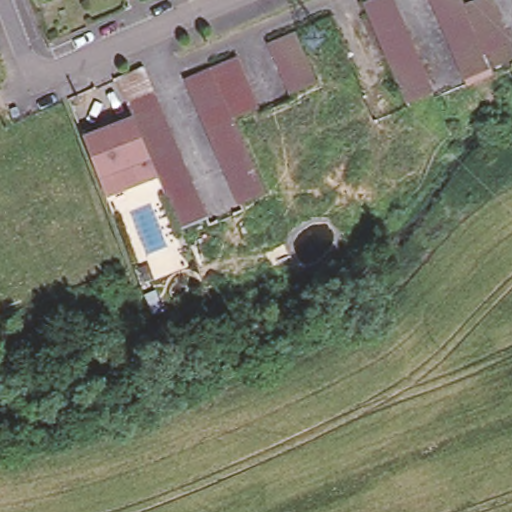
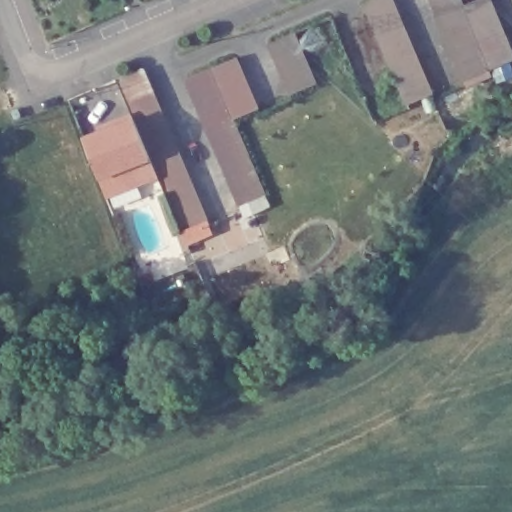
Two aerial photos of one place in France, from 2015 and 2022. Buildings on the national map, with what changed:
unchanged [(387,54),(382,42),(376,30),(370,16),(364,3),(371,0),(392,0),(394,6),(400,19),(406,31),(412,44),(417,56),(422,67),(428,81),(434,92),(409,104),(404,92),(398,79),(392,67),(387,54)]
unchanged [(439,22),(433,10),(429,0),(459,0),(464,11),(489,1),(495,12),(500,25),(505,37),(510,49),(512,54),(512,62),(490,72),(465,83),(460,71),(455,59),(450,47),(445,35),(439,22)]
unchanged [(283,82),(278,70),(273,57),(267,44),(292,33),(298,45),(303,58),(310,71),(315,84),(290,95),(283,82)]
unchanged [(197,110),(191,97),(185,85),(210,74),(235,63),(240,76),(246,89),(252,101),(257,114),(232,125),(237,137),(243,151),(248,162),(254,175),(260,187),(265,201),(241,212),(235,198),(229,185),(224,173),(218,161),(213,149),(207,136),(202,123),(197,110)]
unchanged [(93,130),(108,124),(127,115),(123,105),(119,94),(112,79),(137,68),(143,82),(148,95),(154,108),(160,120),(165,132),(171,146),(176,157),(182,170),(187,182),(192,195),(197,206),(204,220),(178,231),(172,217),(167,206),(162,192),(157,181),(155,176),(102,200),(97,189),(79,142),(95,135),(93,130)]

